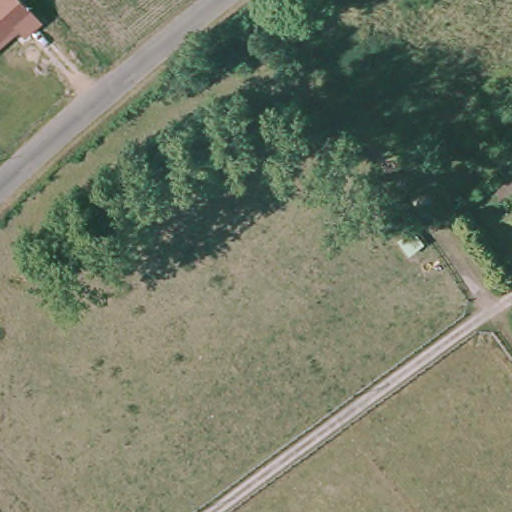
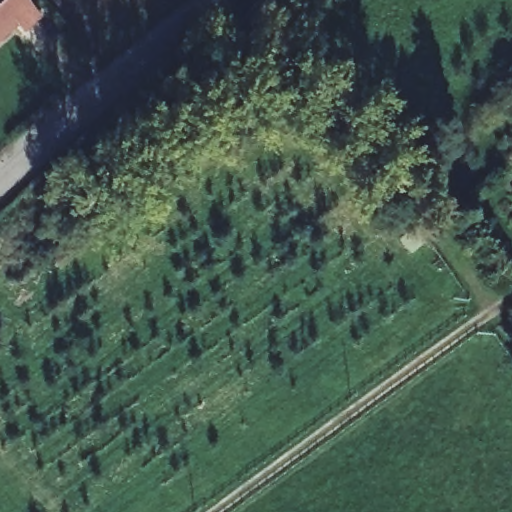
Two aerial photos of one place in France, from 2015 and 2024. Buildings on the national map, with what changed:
unchanged [(21,34),(16,29),(0,42),(0,0),(24,0),(40,18),(21,34)]

